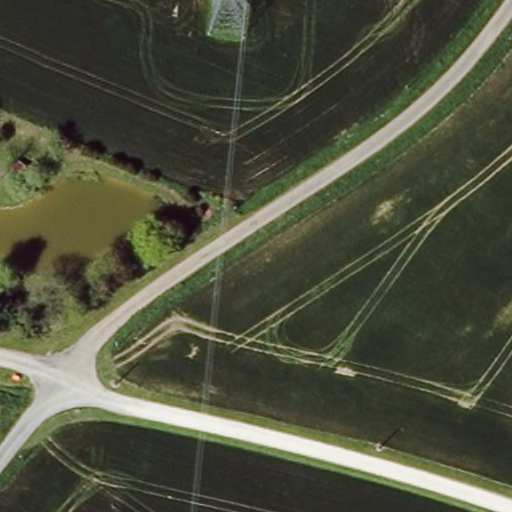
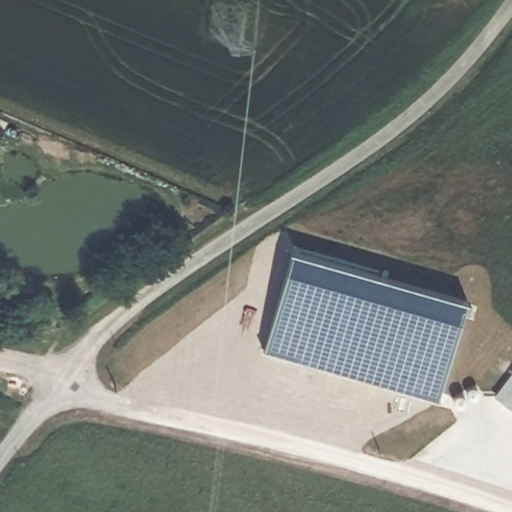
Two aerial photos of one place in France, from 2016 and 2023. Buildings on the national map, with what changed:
new [(440,401),(267,352),(293,251),(469,301),(440,401)]
new [(496,397),(512,376),(512,409),(496,397)]

